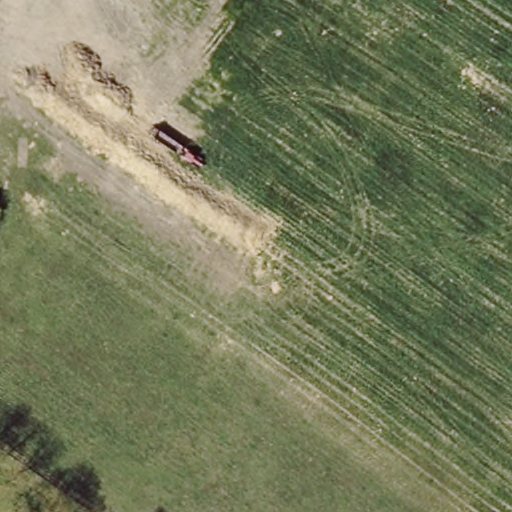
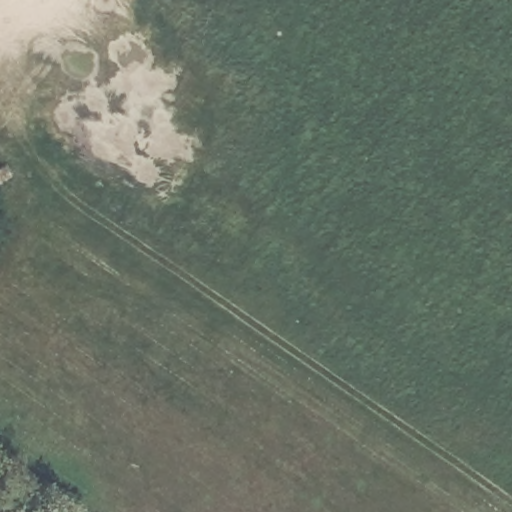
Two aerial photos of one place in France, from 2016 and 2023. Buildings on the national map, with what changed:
[]

